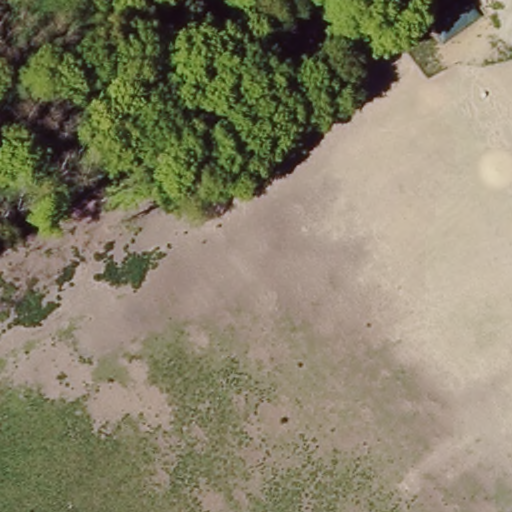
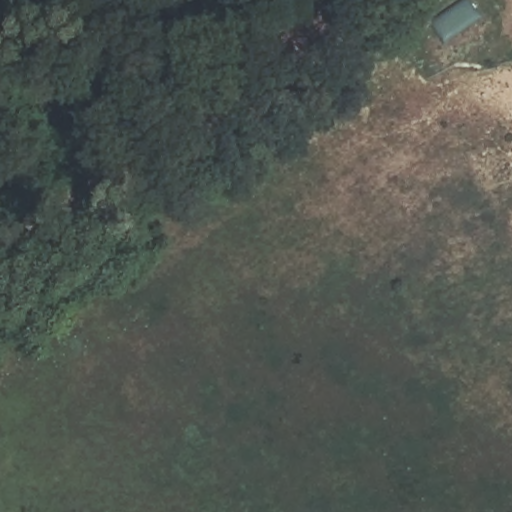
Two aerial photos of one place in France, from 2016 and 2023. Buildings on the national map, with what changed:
[]

